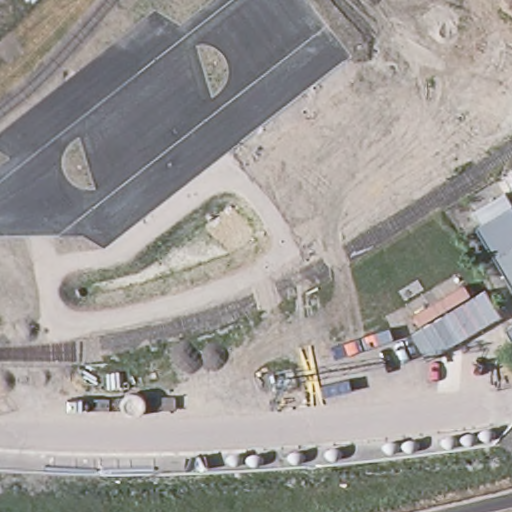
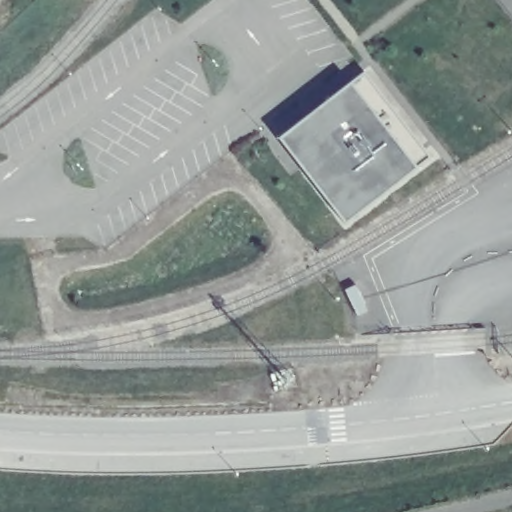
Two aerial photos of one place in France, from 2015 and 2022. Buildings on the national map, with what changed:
new [(430,156),(415,166),(344,224),(278,138),(350,82),(365,72),(430,156)]
demolished [(512,207),(512,282),(476,224),(511,206),(512,207)]
demolished [(512,326),(512,331),(510,328),(512,326)]

